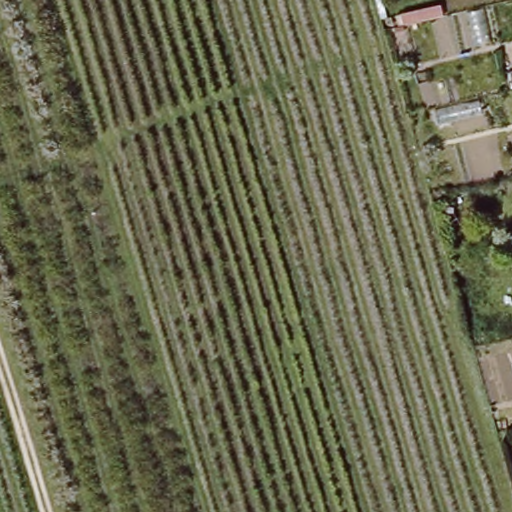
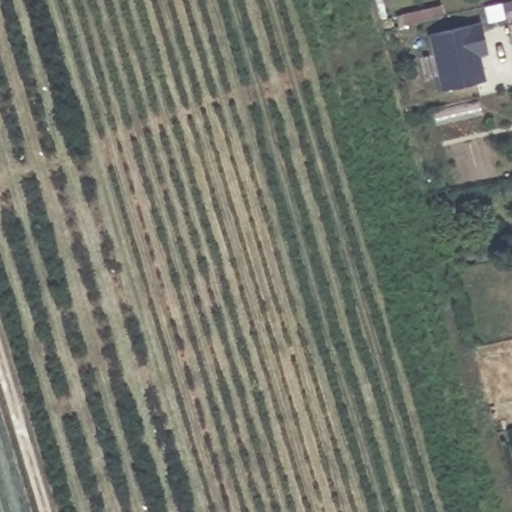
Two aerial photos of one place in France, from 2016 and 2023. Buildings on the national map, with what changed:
new [(442,91),(430,33),(482,20),(490,52),(481,54),(487,79),(442,91)]

